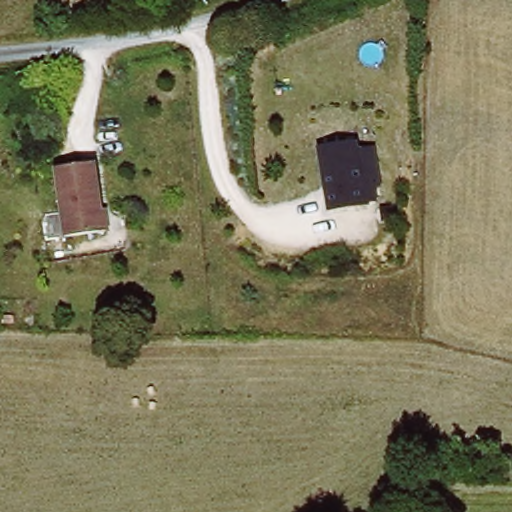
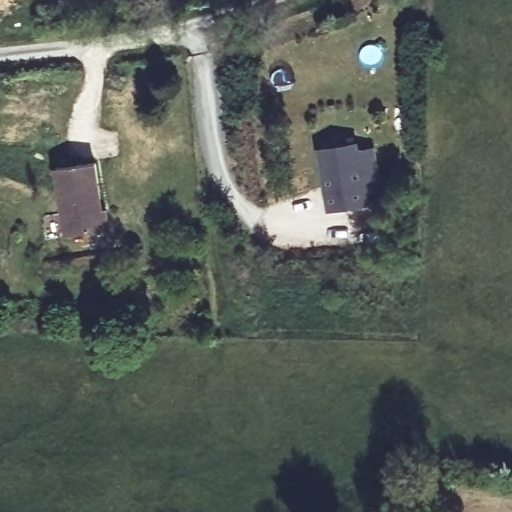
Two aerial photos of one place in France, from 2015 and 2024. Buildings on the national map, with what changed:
unchanged [(373,184),(375,197),(361,202),(332,207),(322,151),(357,146),(357,151),(373,148),(379,183),(373,184)]
unchanged [(62,233),(51,169),(89,162),(100,226),(62,233)]

